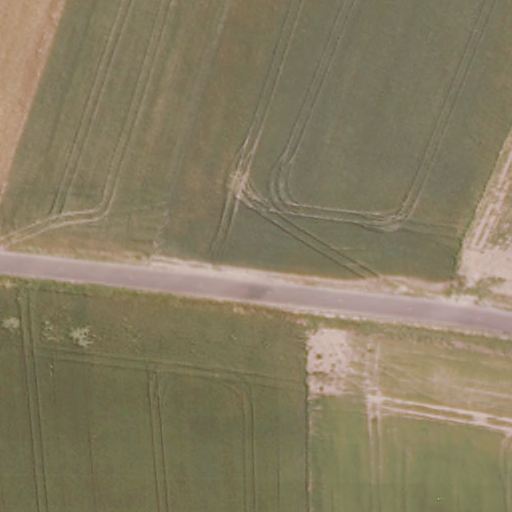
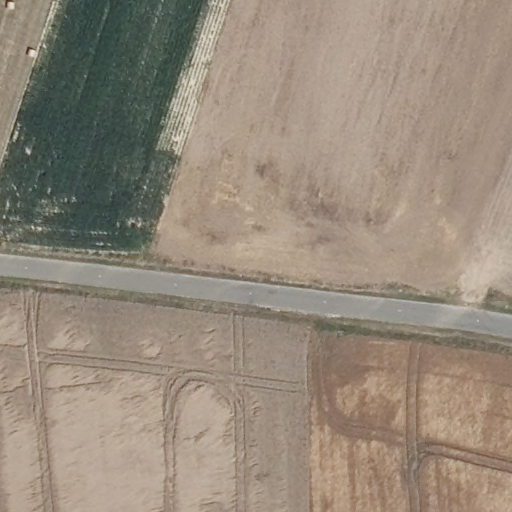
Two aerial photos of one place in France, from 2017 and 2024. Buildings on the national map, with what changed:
unchanged [(475,294),(477,275),(497,277),(495,297),(475,294)]

